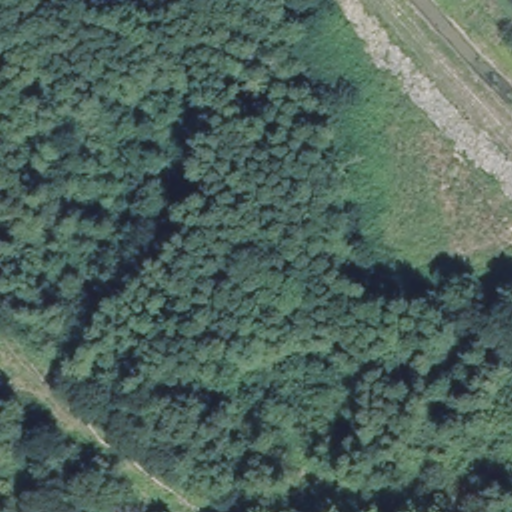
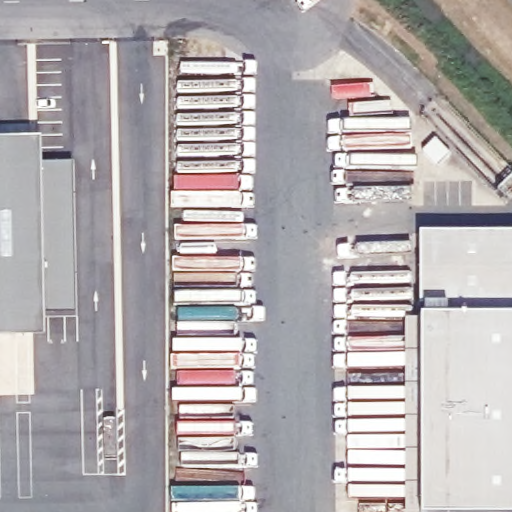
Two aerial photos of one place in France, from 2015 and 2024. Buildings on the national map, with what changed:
new [(13,114),(7,117),(7,120),(37,121),(38,138),(0,139),(0,99),(3,97),(13,114)]
new [(40,163),(39,237),(43,316),(43,337),(0,338),(0,139),(38,138),(40,163)]
new [(40,163),(74,162),(77,315),(43,316),(39,237),(40,163)]
new [(512,233),(512,512),(405,512),(404,321),(418,323),(419,317),(418,234),(512,233)]

